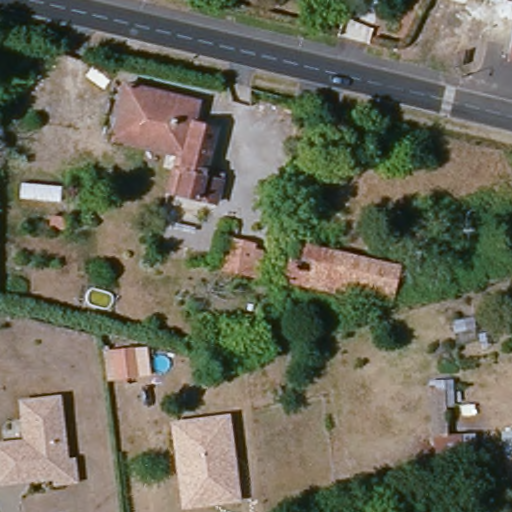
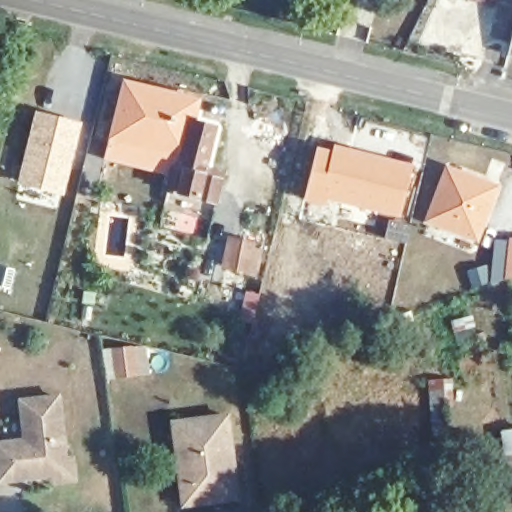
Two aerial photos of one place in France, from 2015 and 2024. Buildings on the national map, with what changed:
unchanged [(512,39),(512,46),(510,46),(512,39)]
unchanged [(512,46),(512,58),(508,57),(510,46),(512,46)]
unchanged [(198,168),(212,171),(210,177),(206,198),(164,190),(169,169),(172,154),(108,140),(123,80),(195,94),(189,125),(207,129),(198,168)]
new [(35,109),(83,122),(63,196),(16,184),(35,109)]
new [(333,150),(334,144),(414,164),(401,217),(329,200),(326,207),(303,200),(317,146),(333,150)]
new [(501,186),(479,241),(424,221),(446,164),(501,186)]
demolished [(283,279),(292,235),(391,262),(385,290),(382,303),(283,279)]
new [(493,282),(496,240),(509,241),(509,237),(512,238),(512,277),(493,282)]
unchanged [(253,271),(244,269),(223,264),(230,238),(251,243),(250,248),(259,250),(253,271)]
unchanged [(128,348),(131,368),(113,370),(111,350),(128,348)]
unchanged [(445,433),(460,432),(461,458),(431,461),(424,376),(442,378),(445,433)]
unchanged [(0,441),(20,439),(16,399),(53,394),(60,459),(68,458),(70,477),(51,480),(50,472),(33,474),(11,477),(0,479),(0,441)]
unchanged [(175,457),(172,423),(226,418),(234,500),(215,502),(179,505),(175,457)]
unchanged [(512,428),(512,481),(506,482),(498,431),(512,428)]

